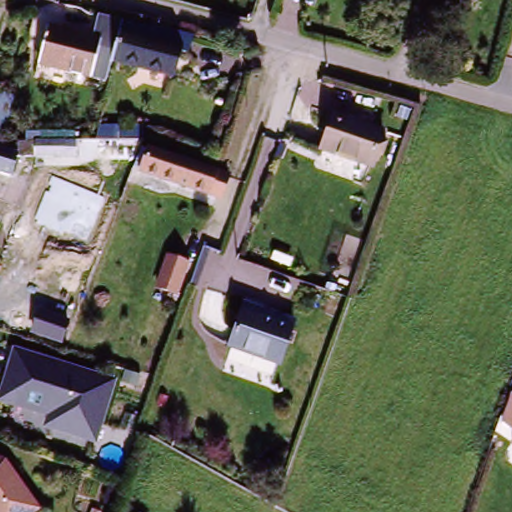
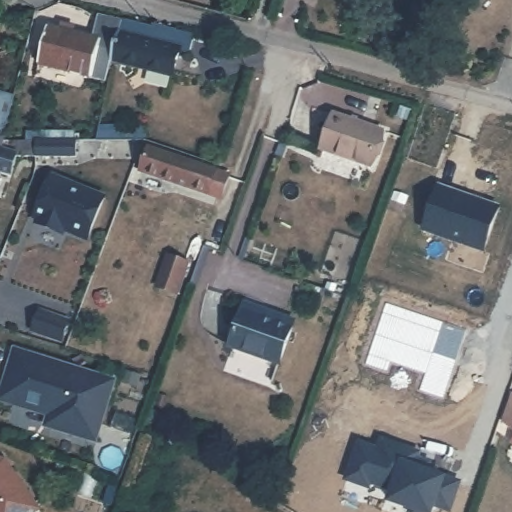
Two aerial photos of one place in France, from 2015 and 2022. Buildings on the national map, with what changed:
unchanged [(106,89),(90,84),(91,81),(42,66),(52,29),(93,39),(99,16),(123,23),(113,64),(106,89)]
unchanged [(194,40),(190,55),(183,53),(174,80),(113,64),(123,23),(194,40)]
unchanged [(6,133),(3,144),(0,143),(0,97),(14,100),(6,133)]
unchanged [(325,150),(337,117),(389,136),(377,169),(325,150)]
unchanged [(11,184),(0,180),(0,143),(3,144),(14,146),(20,146),(24,146),(25,146),(25,136),(75,136),(75,146),(89,146),(92,146),(99,146),(99,132),(143,132),(143,147),(139,162),(138,164),(17,164),(11,184)]
unchanged [(150,150),(221,172),(213,200),(143,177),(150,150)]
new [(51,174),(103,194),(85,240),(62,230),(61,234),(34,223),(36,219),(33,218),(51,174)]
new [(467,196),(475,199),(492,205),(478,248),(418,227),(432,184),(467,196)]
new [(163,257),(182,263),(172,294),(153,288),(163,257)]
new [(386,302),(466,330),(444,397),(419,390),(423,374),(389,362),(387,371),(367,365),(386,302)]
unchanged [(234,347),(248,309),(300,328),(286,366),(234,347)]
new [(38,313),(66,322),(60,342),(31,332),(38,313)]
unchanged [(19,350),(118,381),(100,442),(50,426),(53,415),(4,400),(19,350)]
new [(375,447),(378,438),(415,451),(410,464),(454,479),(445,507),(430,502),(427,512),(414,512),(408,510),(410,505),(386,497),(390,486),(367,479),(366,484),(344,476),(356,441),(375,447)]
new [(425,462),(422,469),(410,464),(412,457),(425,462)]
unchanged [(10,462),(43,509),(38,512),(0,512),(0,458),(10,462)]

